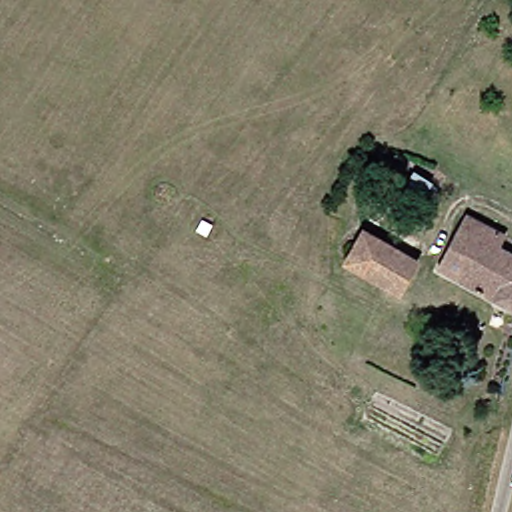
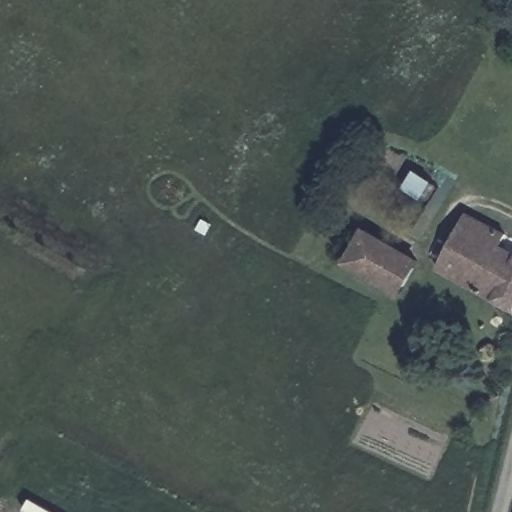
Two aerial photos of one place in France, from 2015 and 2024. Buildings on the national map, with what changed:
unchanged [(415,172),(431,182),(422,198),(405,188),(415,172)]
unchanged [(428,268),(457,214),(496,235),(490,246),(512,258),(512,294),(503,310),(428,268)]
unchanged [(335,263),(353,229),(409,260),(390,295),(335,263)]

